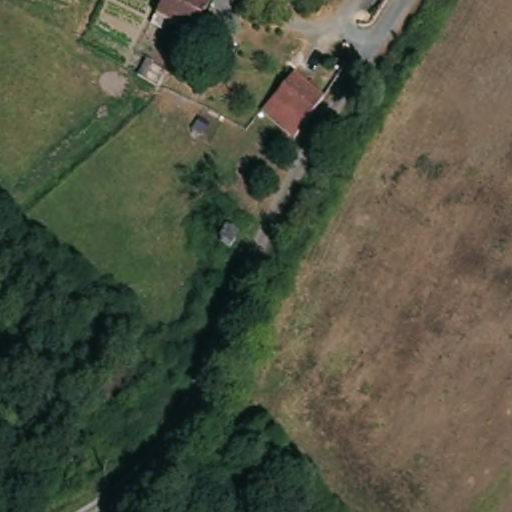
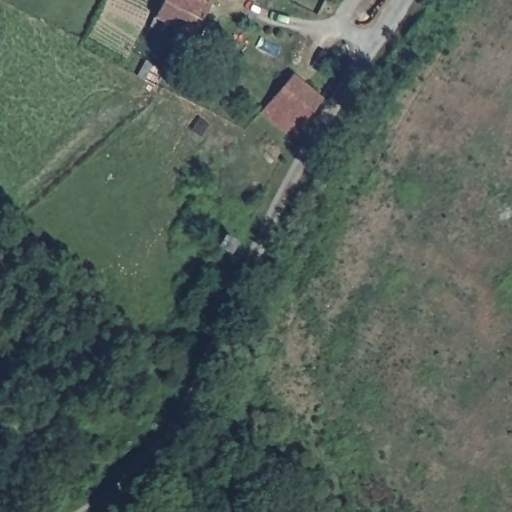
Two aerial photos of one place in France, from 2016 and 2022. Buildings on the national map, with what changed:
unchanged [(211,22),(221,29),(204,61),(173,47),(180,29),(156,17),(165,0),(218,0),(220,1),(211,22)]
unchanged [(413,66),(401,87),(383,77),(396,55),(413,66)]
unchanged [(263,111),(295,74),(323,96),(322,97),(293,136),(263,111)]

